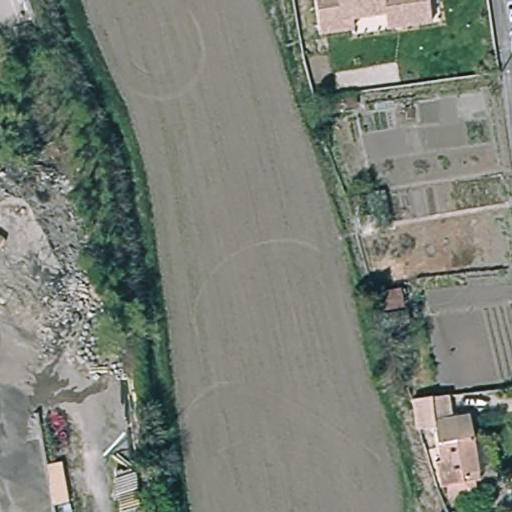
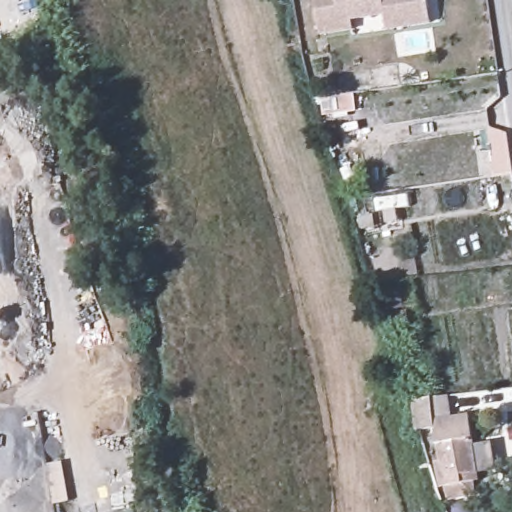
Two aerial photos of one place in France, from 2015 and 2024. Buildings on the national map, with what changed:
unchanged [(384,30),(383,15),(349,20),(351,30),(319,35),(318,23),(316,10),(343,6),(342,0),(424,0),(426,9),(428,24),(384,30)]
unchanged [(300,43),(296,26),(293,9),(312,7),(315,24),(317,40),(300,43)]
unchanged [(344,93),(346,107),(324,109),(323,95),(344,93)]
unchanged [(397,396),(430,393),(434,420),(464,417),(472,478),(462,480),(463,492),(442,494),(432,435),(409,437),(397,396)]

